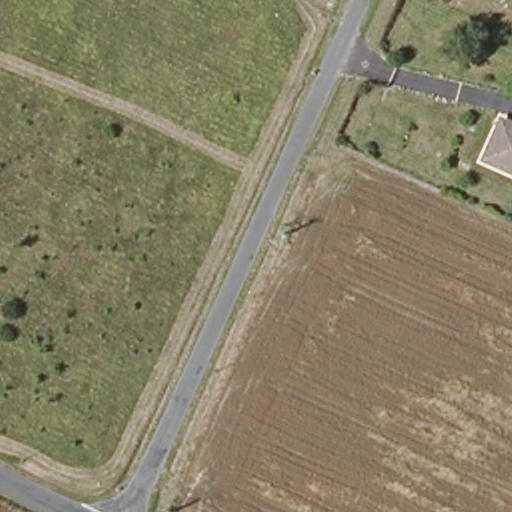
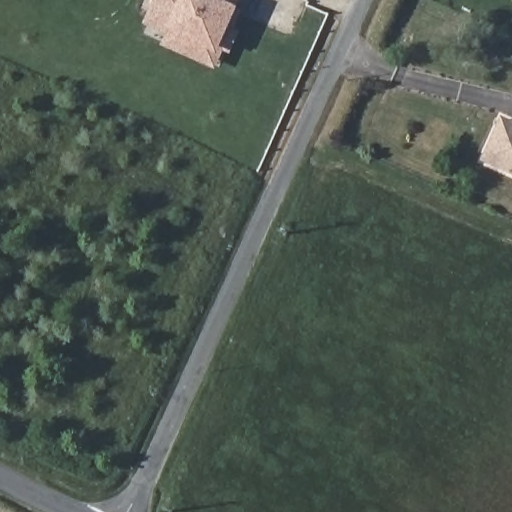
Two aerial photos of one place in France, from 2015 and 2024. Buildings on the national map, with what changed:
new [(165,32),(143,24),(154,0),(240,0),(237,7),(238,8),(242,10),(234,29),(240,31),(230,54),(224,51),(215,70),(161,46),(169,34),(165,32)]
unchanged [(505,117),(512,120),(512,167),(484,154),(505,117)]

